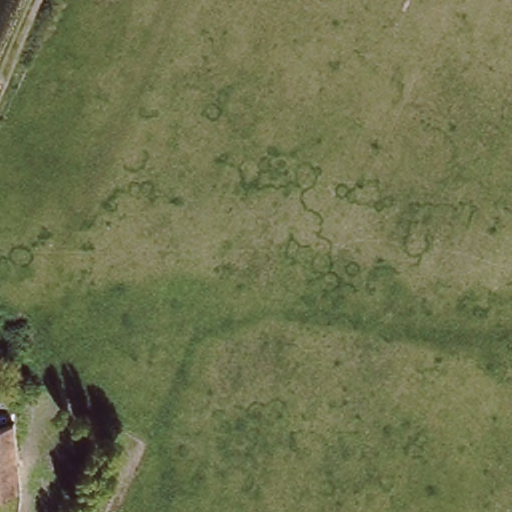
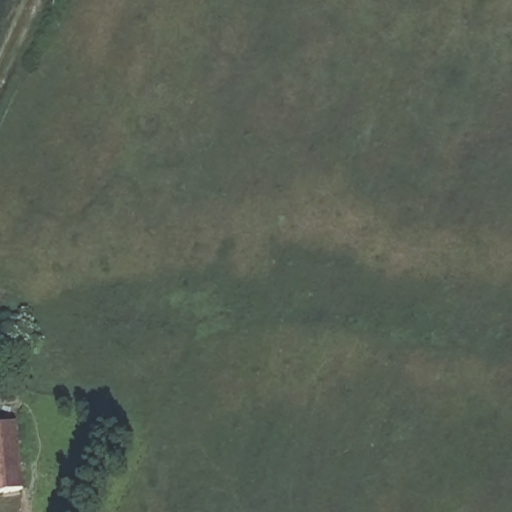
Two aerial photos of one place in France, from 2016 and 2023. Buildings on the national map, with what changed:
unchanged [(22,492),(0,494),(0,426),(15,425),(22,492)]

